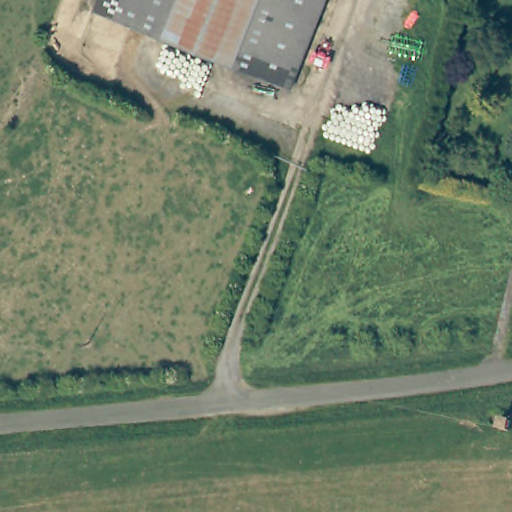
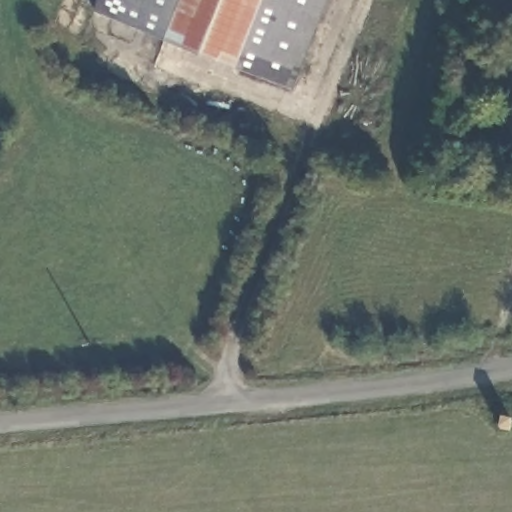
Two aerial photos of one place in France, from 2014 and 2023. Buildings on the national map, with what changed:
unchanged [(92,13),(97,0),(320,0),(286,87),(92,13)]

